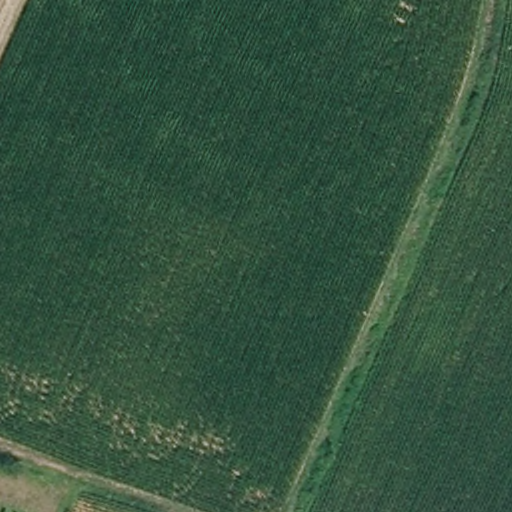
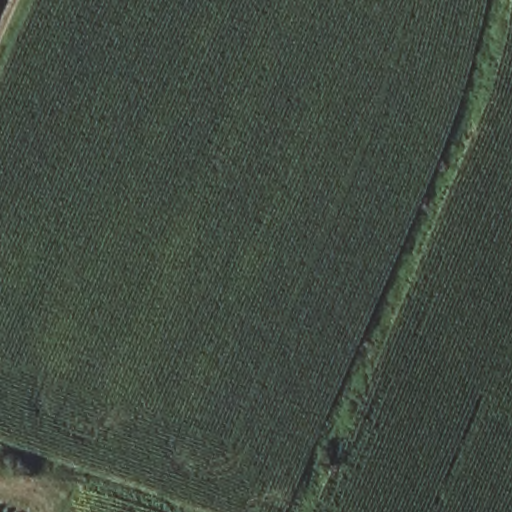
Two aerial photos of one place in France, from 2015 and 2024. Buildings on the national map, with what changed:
[]

